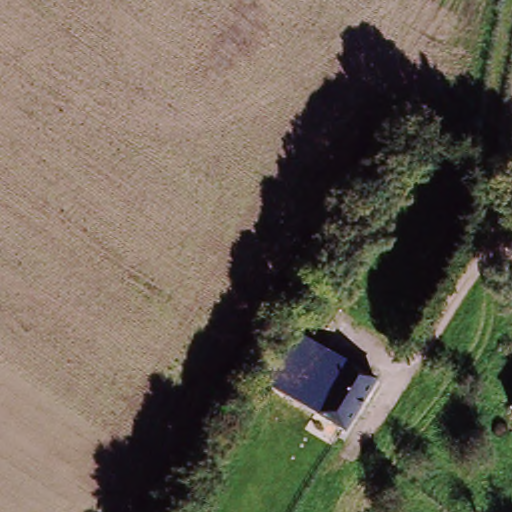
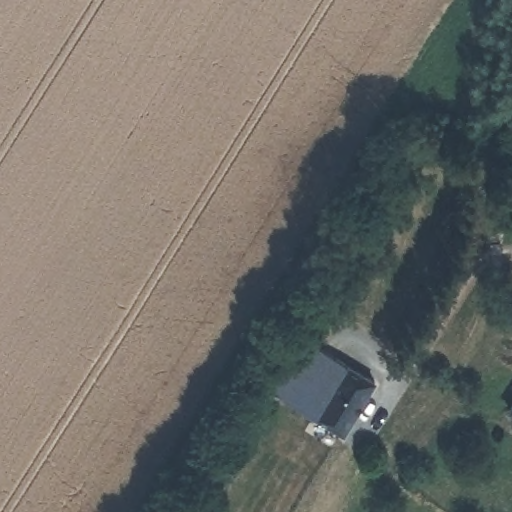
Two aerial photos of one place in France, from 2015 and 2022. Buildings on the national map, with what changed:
unchanged [(309,412),(262,381),(293,330),(344,361),(309,412)]
unchanged [(370,378),(335,430),(309,412),(344,361),(370,378)]

